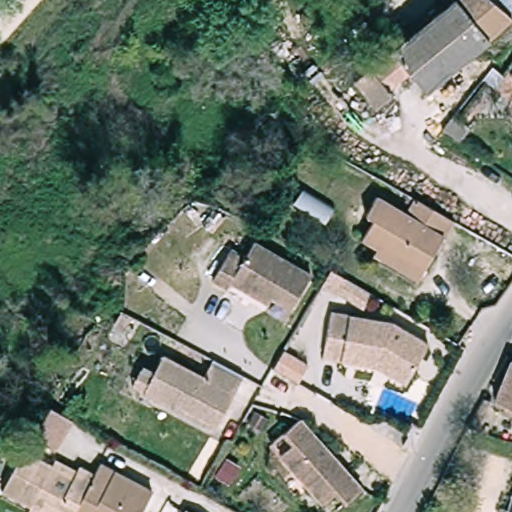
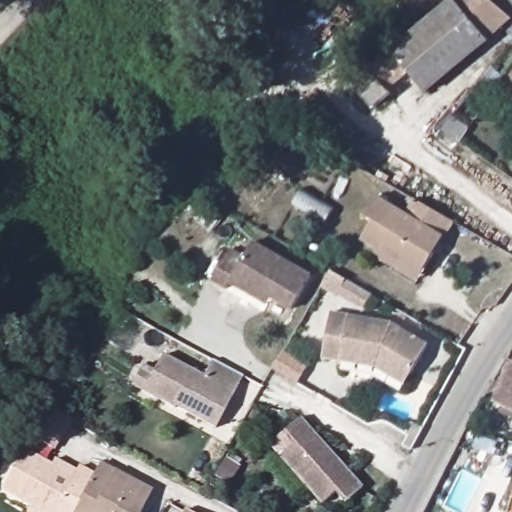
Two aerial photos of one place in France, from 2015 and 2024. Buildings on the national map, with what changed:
unchanged [(487,40),(422,91),(405,69),(370,102),(354,79),(390,47),(452,0),(512,0),(512,16),(510,20),(487,40)]
unchanged [(367,217),(358,212),(367,196),(398,213),(408,196),(447,219),(421,262),(415,273),(354,237),(361,227),(367,217)]
unchanged [(233,279),(228,285),(215,277),(235,246),(249,255),(259,240),(315,277),(296,307),(275,294),(270,301),(233,279)]
unchanged [(370,362),(344,356),(325,352),(335,308),(388,321),(432,343),(413,376),(409,384),(370,362)]
unchanged [(217,362),(247,379),(218,430),(155,399),(145,394),(154,380),(165,360),(205,381),(217,362)]
unchanged [(497,405),(512,365),(512,410),(497,405)]
unchanged [(53,416),(62,421),(48,452),(30,443),(45,411),(53,416)]
unchanged [(350,503),(340,495),(329,505),(283,457),(293,448),(284,437),(300,422),(365,487),(350,503)]
unchanged [(5,497),(20,463),(23,457),(74,481),(80,471),(98,478),(104,466),(155,488),(146,512),(38,512),(5,497)]

